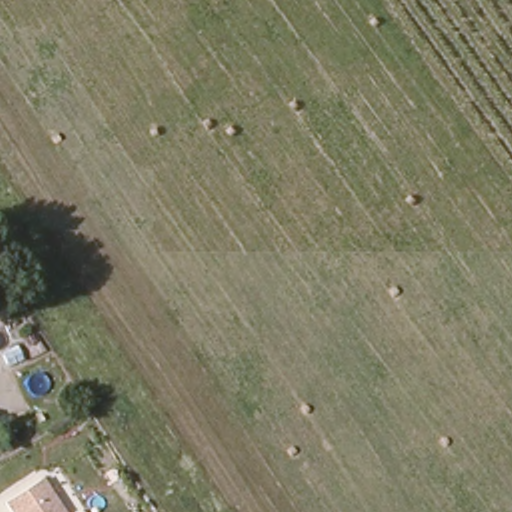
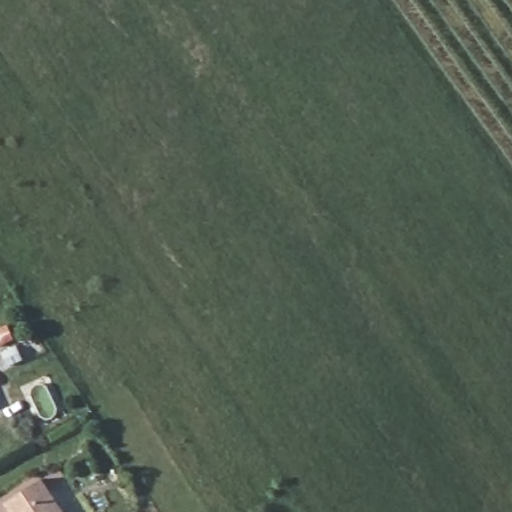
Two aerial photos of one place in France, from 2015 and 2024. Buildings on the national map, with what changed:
unchanged [(43,480),(63,512),(11,512),(8,507),(43,480)]

